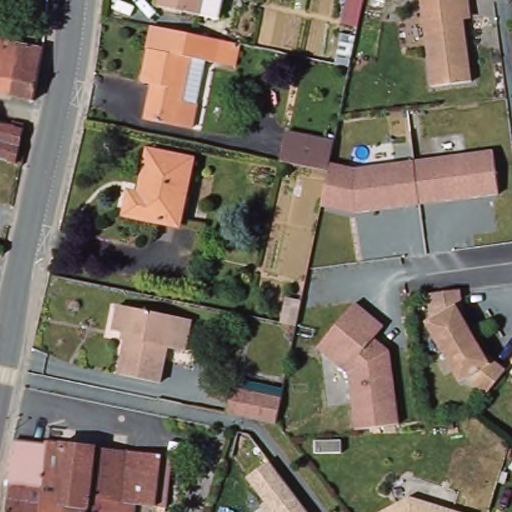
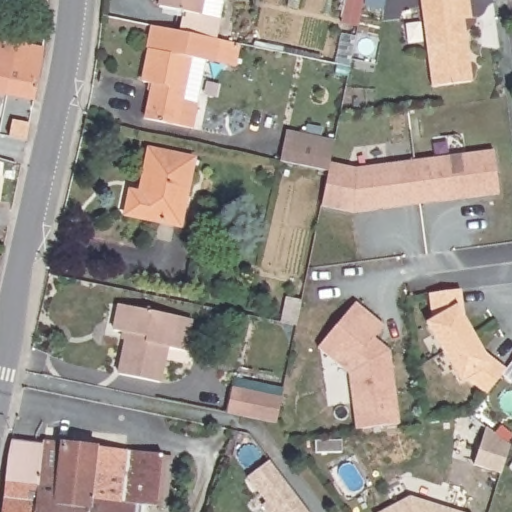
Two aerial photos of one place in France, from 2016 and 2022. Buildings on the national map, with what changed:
unchanged [(201,10),(159,2),(160,0),(203,0),(201,10)]
unchanged [(471,16),(463,18),(471,81),(432,86),(423,0),(469,0),(471,16)]
unchanged [(146,120),(152,85),(142,82),(149,50),(147,50),(152,26),(172,30),(219,40),(239,44),(235,67),(214,63),(206,61),(192,129),(146,120)]
unchanged [(351,61),(348,61),(335,59),(341,28),(357,32),(351,61)]
unchanged [(2,95),(0,95),(0,41),(12,43),(2,95)]
unchanged [(29,101),(2,95),(12,43),(39,49),(29,101)]
unchanged [(14,146),(20,147),(17,161),(0,156),(0,121),(6,122),(7,117),(19,120),(14,146)]
unchanged [(328,151),(327,151),(326,152),(325,153),(325,155),(326,155),(327,156),(326,163),(323,172),(275,161),(281,132),(330,142),(328,151)]
unchanged [(180,226),(126,215),(131,192),(140,194),(149,150),(194,160),(180,226)]
unchanged [(410,160),(488,150),(494,194),(415,204),(410,160)]
unchanged [(323,172),(326,163),(351,168),(410,160),(415,204),(349,212),(317,205),(323,172)]
unchanged [(433,320),(430,294),(443,292),(461,290),(463,308),(460,309),(488,361),(491,358),(506,370),(487,395),(467,378),(461,383),(427,322),(433,320)]
unchanged [(355,301),(386,322),(376,335),(390,346),(398,425),(357,428),(348,373),(319,345),(355,301)]
unchanged [(185,351),(167,348),(160,383),(119,375),(127,334),(114,331),(120,305),(192,320),(185,351)]
unchanged [(277,423),(226,415),(232,387),(282,398),(277,423)]
new [(486,427),(510,446),(501,474),(474,465),(486,427)]
unchanged [(3,512),(11,442),(42,445),(43,441),(45,441),(36,512),(3,512)]
unchanged [(126,450),(172,456),(166,507),(135,505),(134,512),(36,512),(45,441),(126,450)]
unchanged [(311,512),(270,512),(247,475),(272,459),(311,512)]
unchanged [(461,512),(377,512),(410,495),(461,512)]

